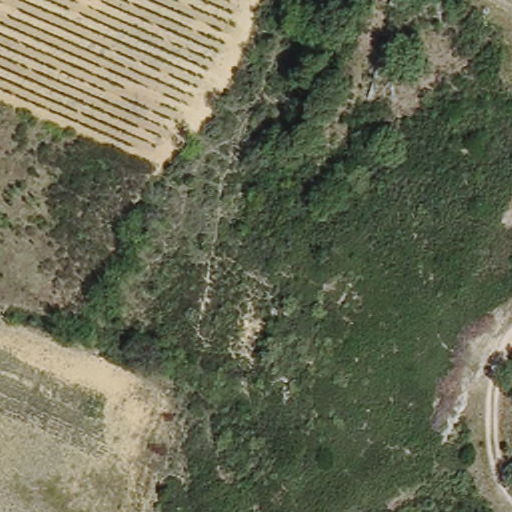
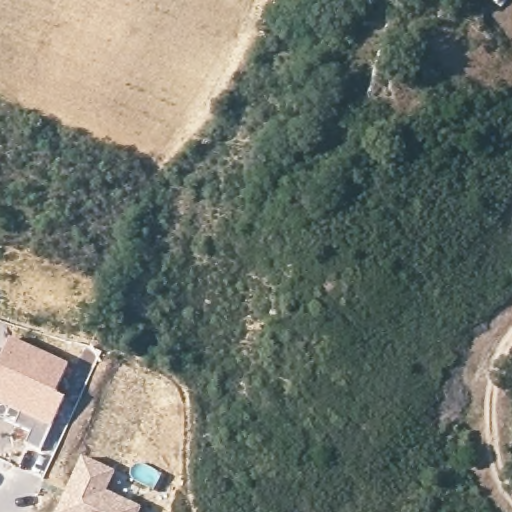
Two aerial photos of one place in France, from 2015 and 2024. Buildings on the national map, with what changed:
new [(7,342),(66,368),(52,397),(62,402),(38,455),(22,447),(28,435),(0,423),(0,357),(7,342)]
new [(114,475),(105,494),(140,510),(140,512),(59,512),(82,460),(114,475)]

